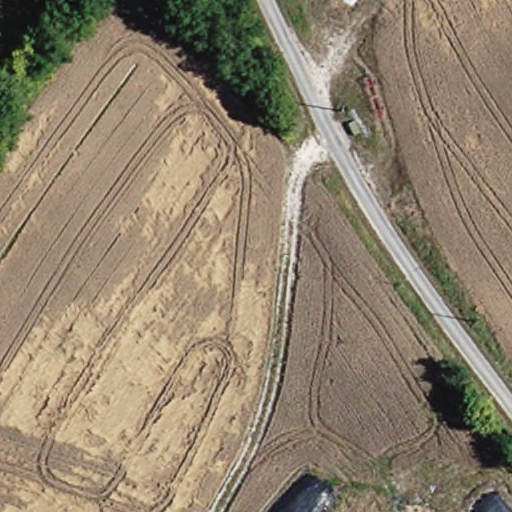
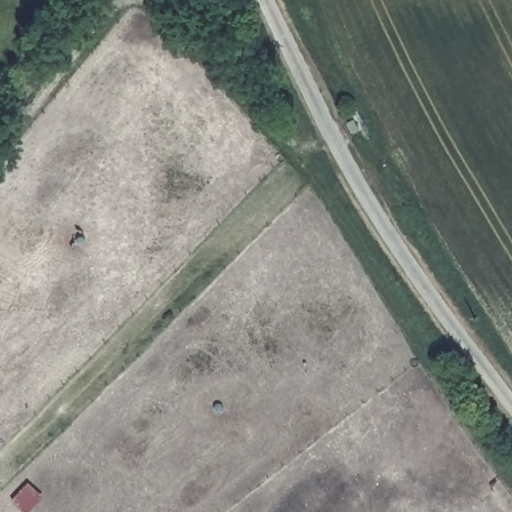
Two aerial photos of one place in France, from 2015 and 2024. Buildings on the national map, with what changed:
[]

